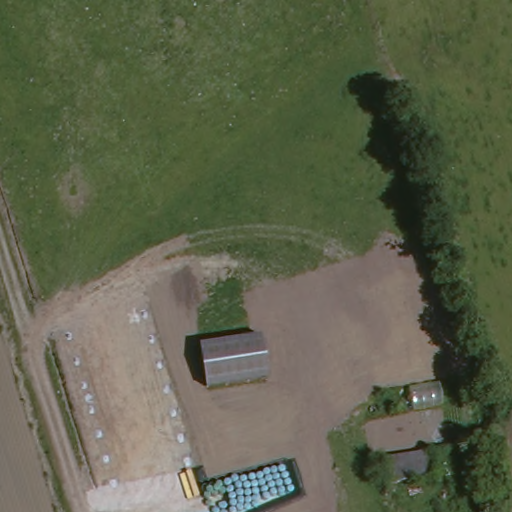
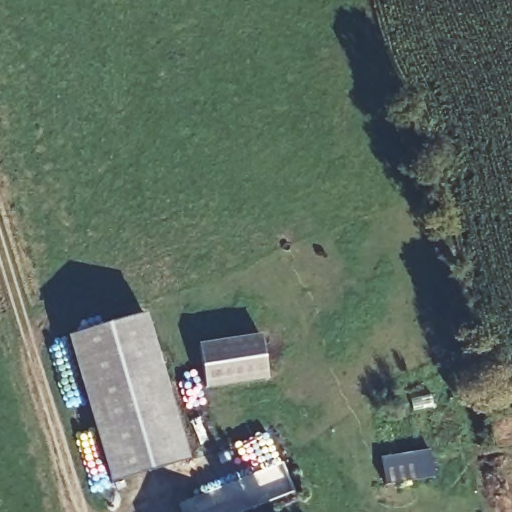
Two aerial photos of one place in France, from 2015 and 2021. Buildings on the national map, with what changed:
new [(151,315),(201,459),(126,485),(76,341),(151,315)]
unchanged [(202,344),(263,331),(272,375),(211,387),(202,344)]
unchanged [(430,447),(436,477),(386,485),(381,456),(430,447)]
demolished [(304,485),(229,506),(220,480),(299,460),(304,485)]

